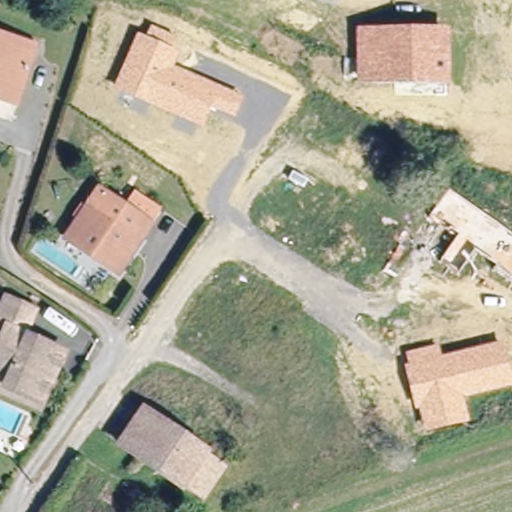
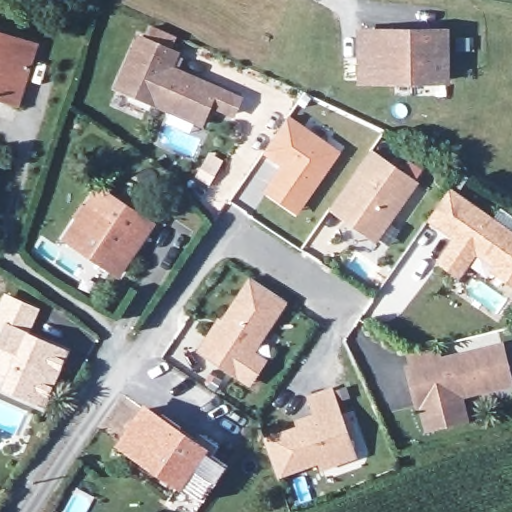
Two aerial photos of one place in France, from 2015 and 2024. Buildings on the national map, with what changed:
unchanged [(146,38),(152,26),(178,38),(172,48),(180,52),(174,67),(243,98),(235,117),(210,107),(204,127),(115,88),(138,34),(146,38)]
unchanged [(450,29),(450,84),(356,84),(357,30),(450,29)]
unchanged [(0,102),(0,38),(32,48),(19,91),(14,106),(0,102)]
demolished [(311,142),(329,114),(398,157),(382,184),(311,142)]
new [(263,152),(289,116),(341,152),(297,214),(264,190),(280,166),(263,152)]
new [(371,149),(402,170),(409,161),(423,171),(416,179),(420,182),(377,243),(330,209),(371,149)]
unchanged [(512,284),(493,271),(496,266),(477,253),(460,279),(438,262),(456,237),(430,219),(448,191),(512,236),(512,284)]
unchanged [(60,247),(91,200),(117,217),(128,201),(155,219),(144,235),(112,282),(60,247)]
new [(268,359),(250,386),(222,370),(197,352),(217,319),(221,320),(250,277),(288,303),(257,352),(268,359)]
demolished [(210,358),(178,339),(211,287),(240,306),(210,358)]
unchanged [(29,401),(10,394),(13,385),(0,380),(0,361),(12,329),(2,326),(10,300),(38,311),(31,334),(70,350),(51,394),(45,408),(29,401)]
unchanged [(443,358),(503,344),(512,375),(512,388),(465,400),(470,423),(426,433),(420,410),(415,411),(405,367),(406,366),(405,354),(439,346),(443,358)]
new [(358,459),(321,472),(319,463),(279,477),(264,438),(296,425),(295,420),(312,414),(305,396),(332,387),(358,459)]
unchanged [(223,465),(200,500),(120,449),(142,413),(223,465)]

